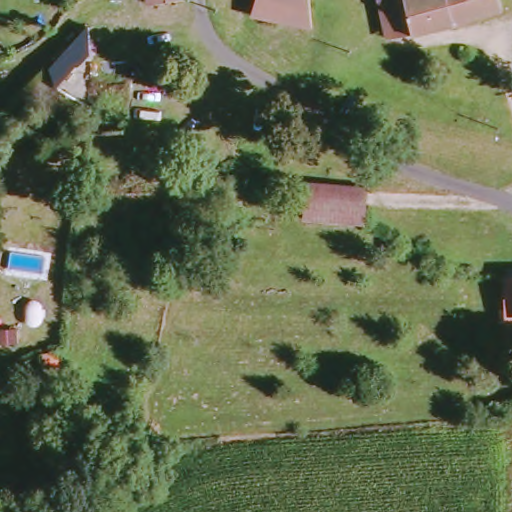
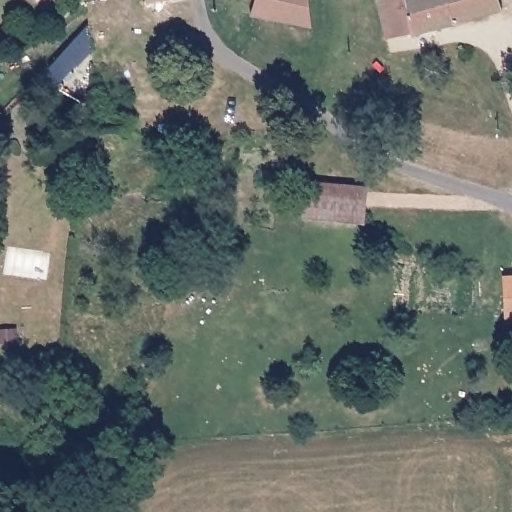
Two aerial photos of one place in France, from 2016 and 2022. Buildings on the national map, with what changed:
unchanged [(150,0),(170,0),(154,4),(151,3),(150,0)]
unchanged [(289,19),(254,14),(256,5),(257,0),(309,0),(312,23),(289,19)]
unchanged [(385,0),(496,0),(499,10),(408,34),(407,29),(382,35),(374,3),(385,0)]
unchanged [(59,91),(56,71),(101,34),(103,33),(101,63),(59,91)]
unchanged [(306,219),(309,179),(367,187),(366,195),(364,223),(350,223),(306,219)]
unchanged [(509,318),(504,275),(512,275),(512,335),(511,335),(509,318)]

